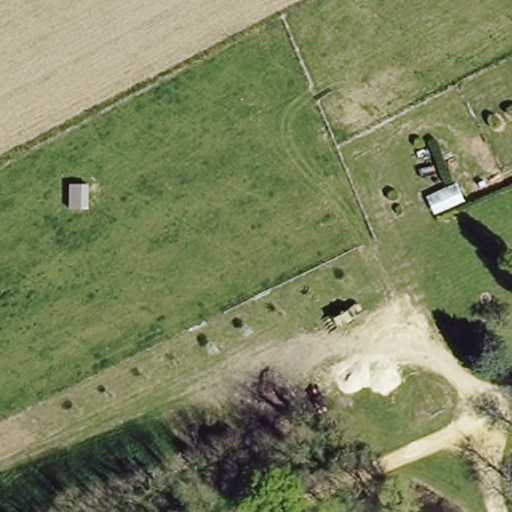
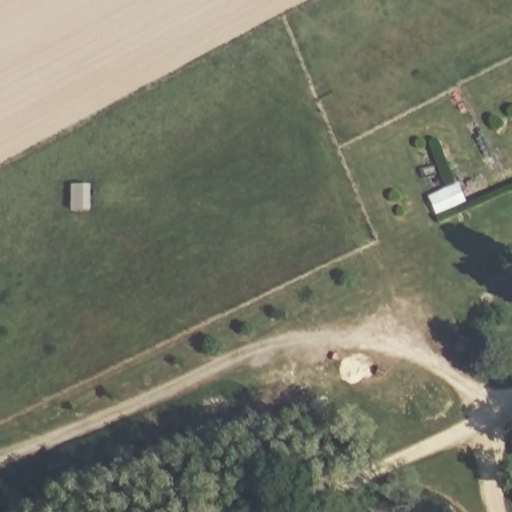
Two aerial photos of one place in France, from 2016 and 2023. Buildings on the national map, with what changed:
unchanged [(436,212),(428,191),(462,176),(469,200),(436,212)]

